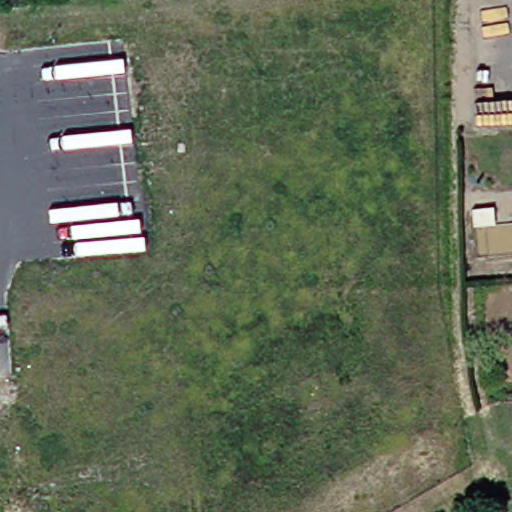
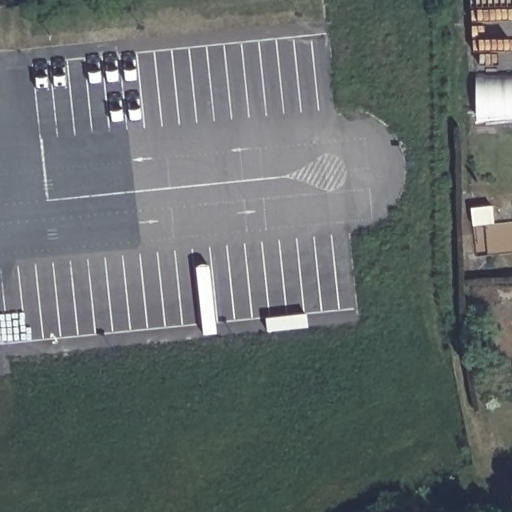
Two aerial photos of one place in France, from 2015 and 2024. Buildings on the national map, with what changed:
new [(512,122),(477,123),(476,72),(512,72),(512,122)]
unchanged [(484,207),(505,207),(505,226),(484,226),(484,207)]

